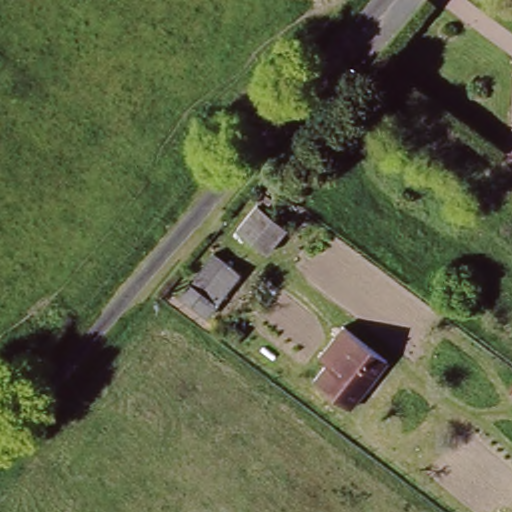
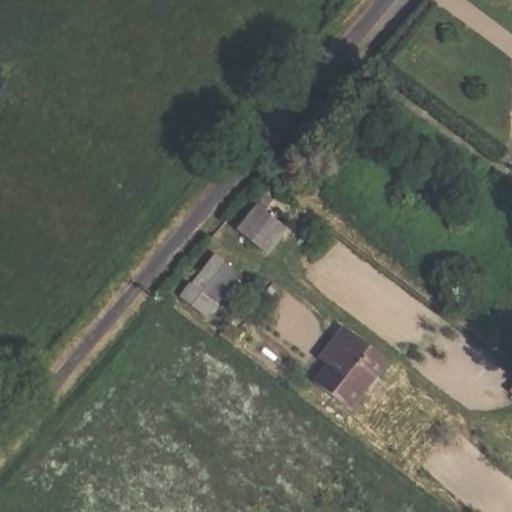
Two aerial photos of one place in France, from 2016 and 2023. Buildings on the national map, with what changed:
unchanged [(301,214),(270,256),(238,234),(273,190),(301,214)]
unchanged [(240,278),(211,320),(182,298),(217,260),(240,278)]
unchanged [(321,378),(340,353),(323,341),(338,320),(393,360),(360,406),(321,378)]

